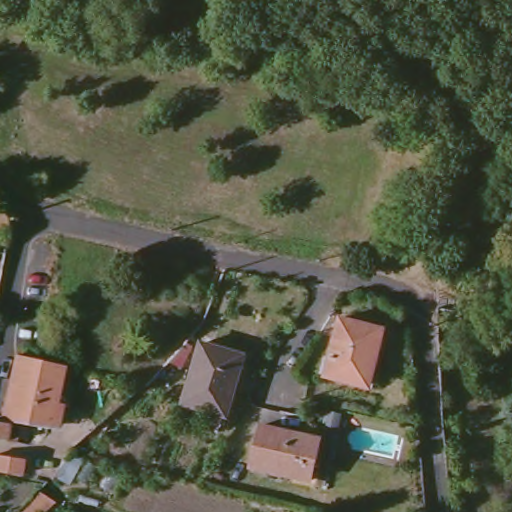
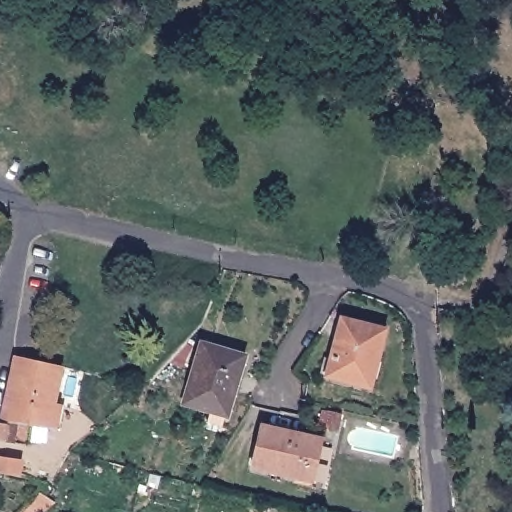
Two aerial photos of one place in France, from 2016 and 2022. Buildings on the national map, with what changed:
unchanged [(4,241),(0,240),(0,210),(3,213),(6,223),(4,241)]
unchanged [(381,352),(373,386),(325,373),(341,318),(383,329),(376,351),(381,352)]
unchanged [(188,376),(199,339),(243,351),(233,386),(188,376)]
unchanged [(8,423),(14,394),(6,393),(6,391),(14,355),(61,365),(49,423),(48,429),(29,426),(14,424),(14,444),(0,444),(0,422),(8,423)]
unchanged [(182,398),(188,376),(233,386),(226,412),(182,398)]
unchanged [(338,411),(334,427),(321,424),(324,408),(338,411)]
unchanged [(251,462),(261,422),(318,435),(308,477),(251,462)]
unchanged [(0,475),(0,460),(18,462),(16,478),(0,475)]

